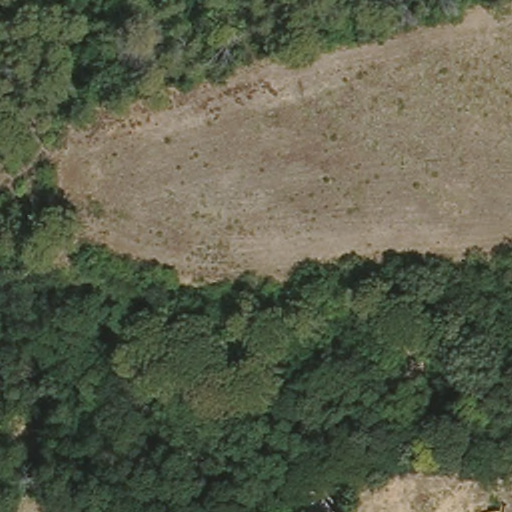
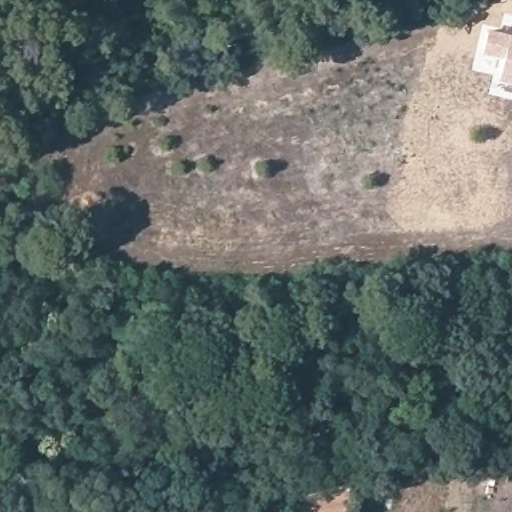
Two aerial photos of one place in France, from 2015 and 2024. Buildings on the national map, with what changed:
new [(512,32),(512,83),(497,79),(502,58),(480,52),(486,26),(512,32)]

